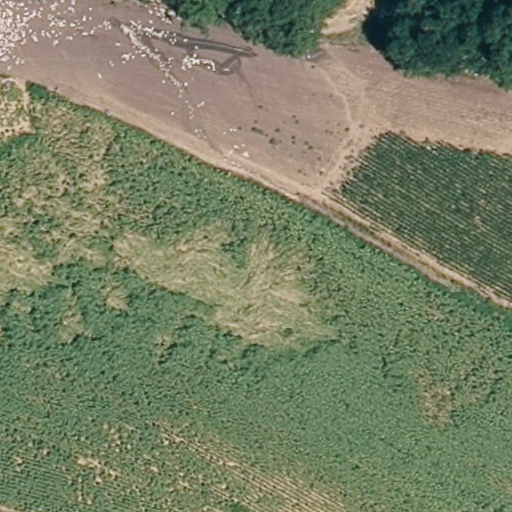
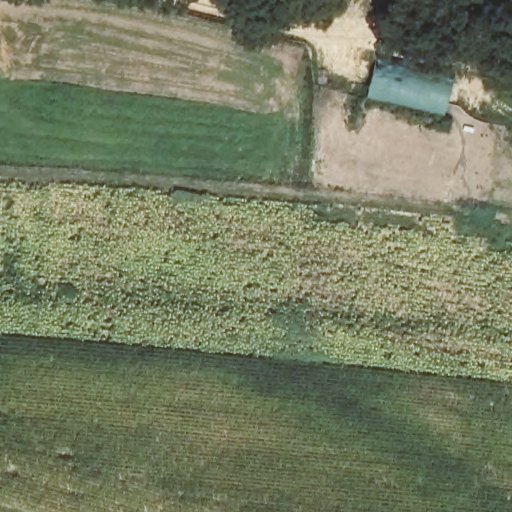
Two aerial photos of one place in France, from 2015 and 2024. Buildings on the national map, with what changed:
new [(396,66),(452,80),(447,106),(369,100),(371,79),(388,82),(392,76),(396,66)]

